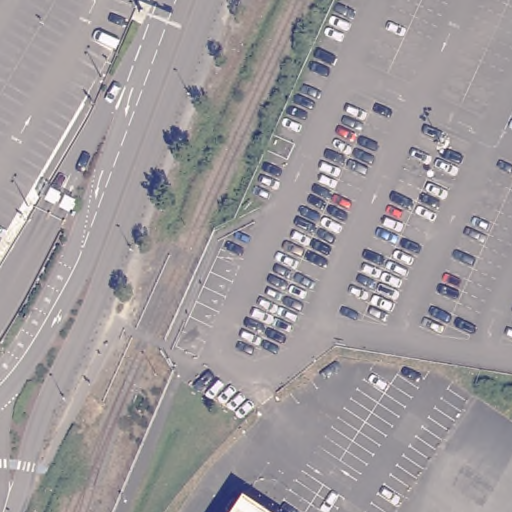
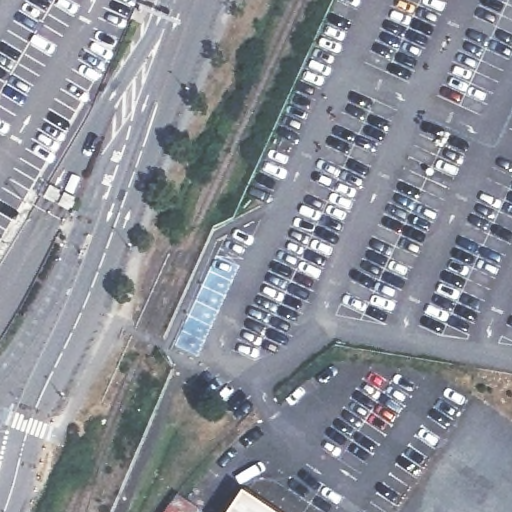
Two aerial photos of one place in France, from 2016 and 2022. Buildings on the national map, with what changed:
unchanged [(225,512),(241,487),(278,512),(225,512)]

